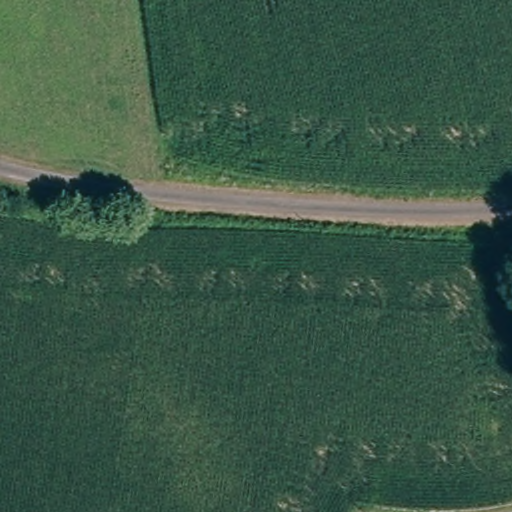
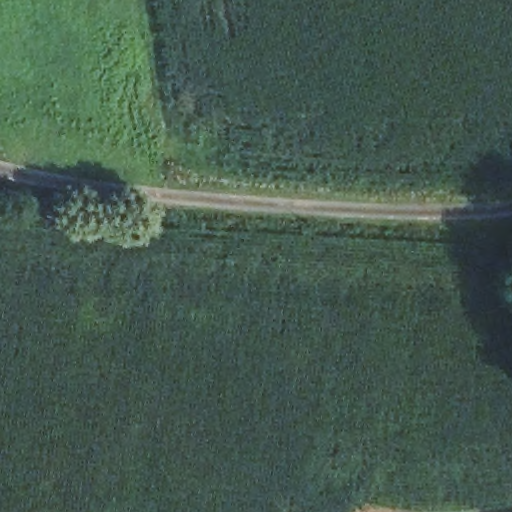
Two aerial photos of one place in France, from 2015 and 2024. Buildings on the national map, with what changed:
[]

